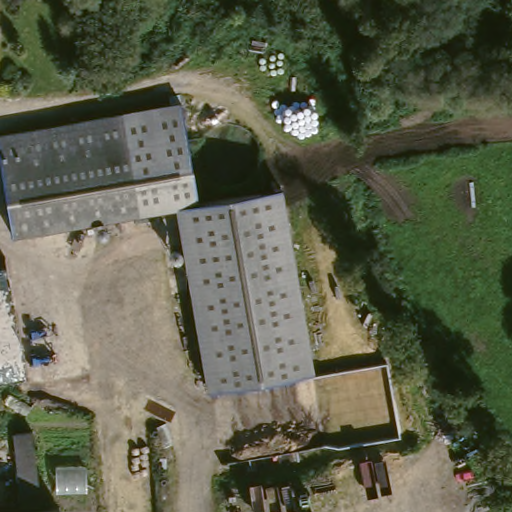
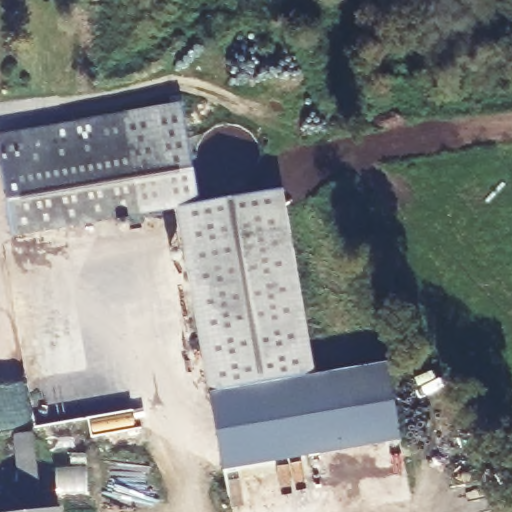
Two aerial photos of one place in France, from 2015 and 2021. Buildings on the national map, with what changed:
unchanged [(183,102),(200,207),(284,194),(314,378),(206,399),(177,210),(147,214),(128,115),(128,112),(183,102)]
unchanged [(4,127),(128,115),(130,139),(7,151),(4,127)]
unchanged [(135,200),(136,215),(16,227),(7,151),(130,139),(135,200)]
new [(314,378),(387,365),(400,441),(223,471),(210,398),(314,378)]
unchanged [(4,508),(24,506),(15,431),(35,430),(45,504),(76,499),(78,512),(5,512),(4,508)]

